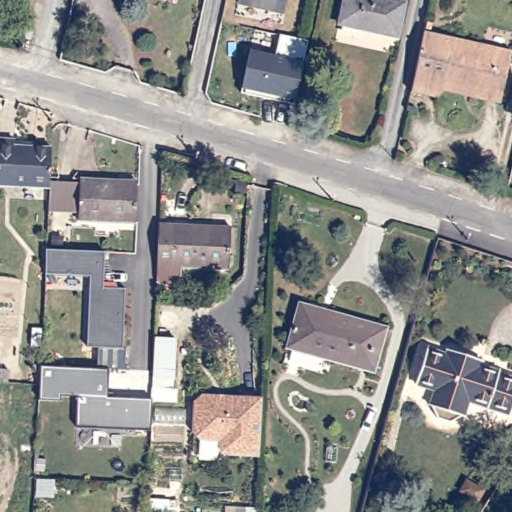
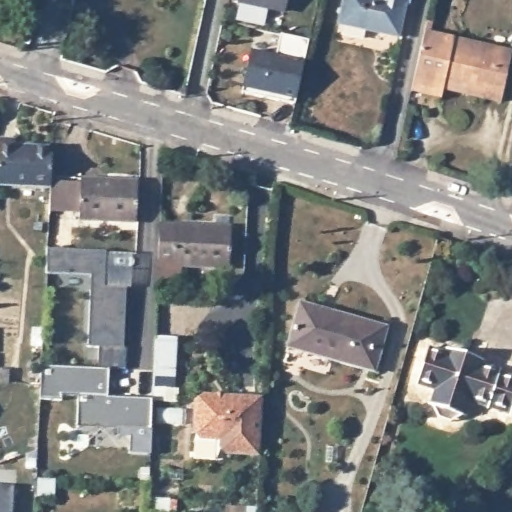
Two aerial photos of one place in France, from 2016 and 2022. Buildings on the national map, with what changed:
unchanged [(237,1),(237,0),(286,0),(283,11),(237,1)]
unchanged [(404,8),(397,41),(337,29),(344,0),(376,0),(376,1),(404,8)]
unchanged [(415,93),(416,88),(416,86),(427,33),(428,33),(456,40),(512,51),(512,66),(504,101),(472,95),(466,94),(467,89),(447,84),(446,93),(444,99),(415,93)]
unchanged [(276,55),(280,36),(312,42),(299,109),(241,97),(250,51),(276,55)]
unchanged [(18,150),(56,153),(53,192),(0,189),(0,180),(2,143),(18,144),(18,150)]
unchanged [(136,181),(134,223),(77,220),(79,178),(136,181)]
unchanged [(164,223),(178,224),(217,226),(235,227),(235,230),(233,269),(185,266),(184,283),(161,282),(162,265),(164,223)]
unchanged [(105,251),(103,287),(125,288),(122,348),(86,346),(90,275),(44,273),(45,248),(105,251)]
unchanged [(386,327),(373,372),(285,347),(298,302),(386,327)]
unchanged [(152,387),(154,336),(174,337),(172,387),(152,387)]
unchanged [(434,419),(428,407),(427,406),(432,391),(412,385),(423,349),(443,355),(444,350),(466,357),(478,361),(476,365),(496,371),(495,373),(512,378),(512,416),(507,414),(465,401),(460,417),(459,416),(447,423),(434,419)]
unchanged [(107,396),(152,399),(150,431),(75,427),(77,396),(61,395),(60,400),(38,398),(40,365),(108,368),(107,396)]
unchanged [(0,383),(0,368),(8,369),(8,384),(0,383)]
unchanged [(261,429),(260,459),(225,457),(220,452),(221,443),(201,442),(194,435),(196,406),(203,399),(263,402),(261,429)]
new [(12,512),(0,512),(0,485),(13,486),(12,512)]
unchanged [(148,494),(180,496),(179,512),(148,512),(148,494)]

